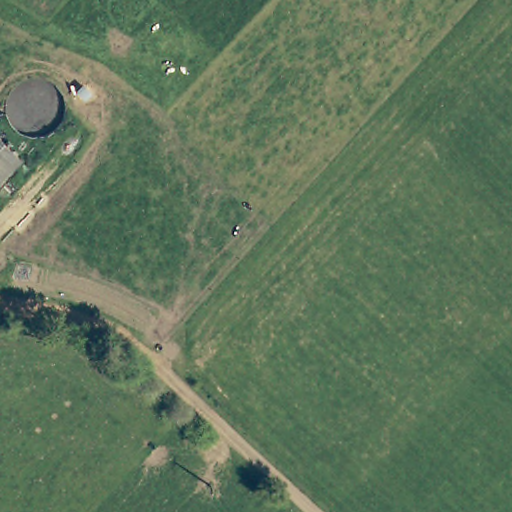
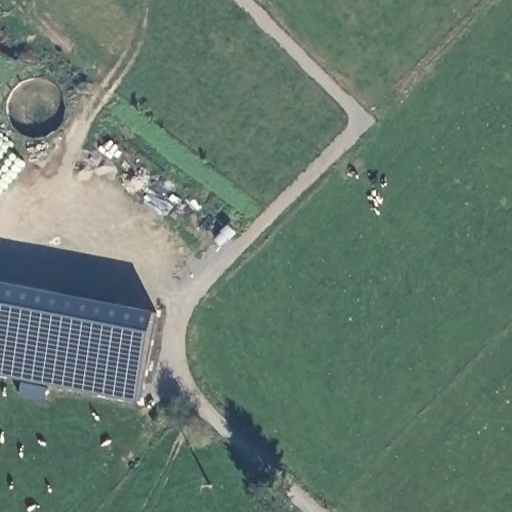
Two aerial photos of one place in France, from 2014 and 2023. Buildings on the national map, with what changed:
demolished [(0,180),(0,135),(22,159),(0,180)]
new [(145,397),(0,371),(0,279),(161,308),(145,397)]

